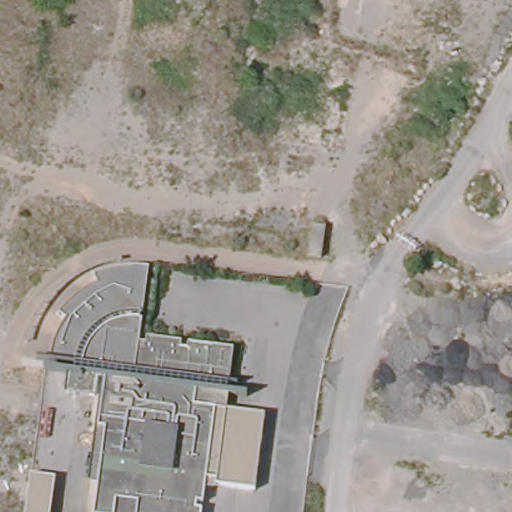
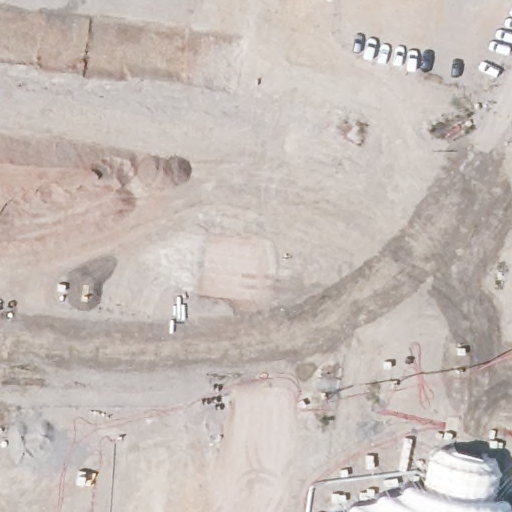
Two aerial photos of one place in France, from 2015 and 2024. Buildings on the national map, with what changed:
unchanged [(316,254),(319,223),(331,225),(327,256),(316,254)]
demolished [(137,371),(76,362),(76,359),(51,355),(59,332),(68,316),(63,309),(73,298),(90,285),(103,279),(100,270),(121,265),(143,265),(152,267),(146,309),(141,308),(141,316),(145,317),(141,340),(137,371)]
demolished [(149,336),(183,341),(183,345),(191,347),(192,342),(236,349),(229,394),(219,393),(197,389),(196,402),(218,406),(206,477),(203,501),(199,501),(198,510),(201,510),(201,512),(135,512),(136,503),(116,500),(114,512),(94,512),(106,427),(99,426),(106,377),(98,375),(96,394),(68,390),(71,369),(75,370),(76,362),(137,371),(141,340),(149,341),(149,336)]
demolished [(269,414),(261,489),(206,477),(218,406),(269,414)]
new [(497,468),(494,495),(500,496),(507,498),(509,503),(512,506),(512,512),(339,512),(343,510),(346,507),(349,504),(353,502),(363,502),(374,499),(378,493),(384,492),(389,490),(395,488),(399,486),(401,482),(406,480),(421,483),(427,454),(437,444),(491,455),(497,468)]
demolished [(57,512),(32,512),(38,474),(61,476),(57,512)]

